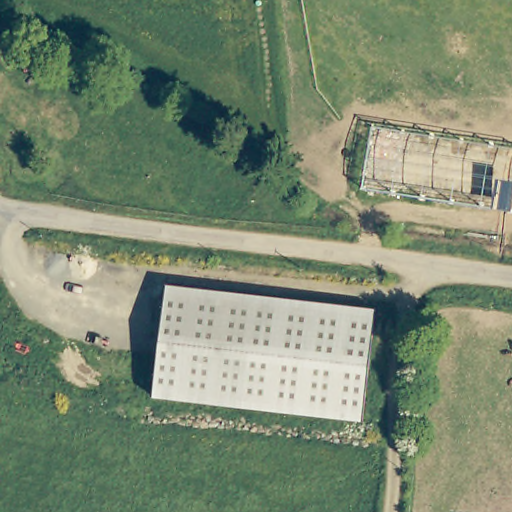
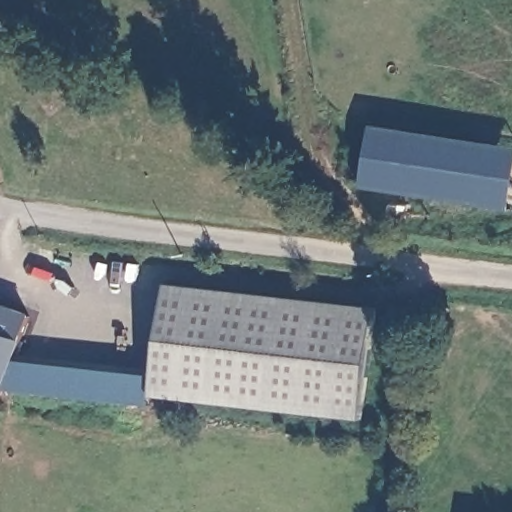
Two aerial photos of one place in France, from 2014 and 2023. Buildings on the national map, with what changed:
new [(362,187),(371,125),(512,146),(512,203),(511,210),(362,187)]
unchanged [(166,285),(373,308),(362,416),(151,392),(166,285)]
new [(0,408),(0,303),(32,314),(23,340),(0,408)]

